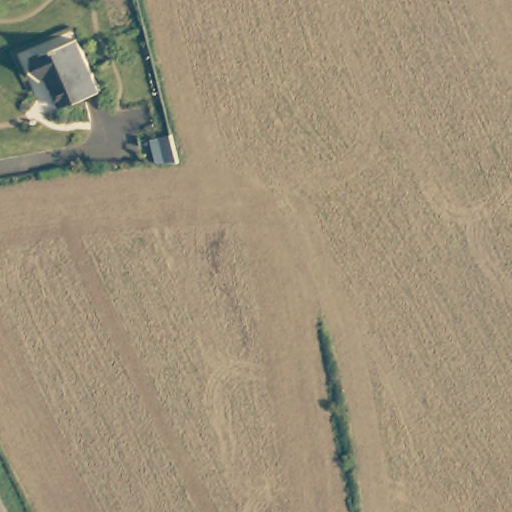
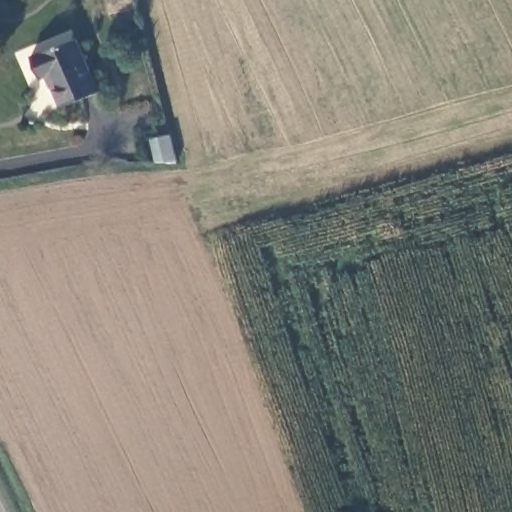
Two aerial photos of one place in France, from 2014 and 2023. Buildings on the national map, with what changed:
unchanged [(77,96),(58,102),(44,72),(35,75),(28,54),(71,36),(92,91),(77,96)]
unchanged [(152,136),(172,133),(179,160),(154,160),(152,136)]

